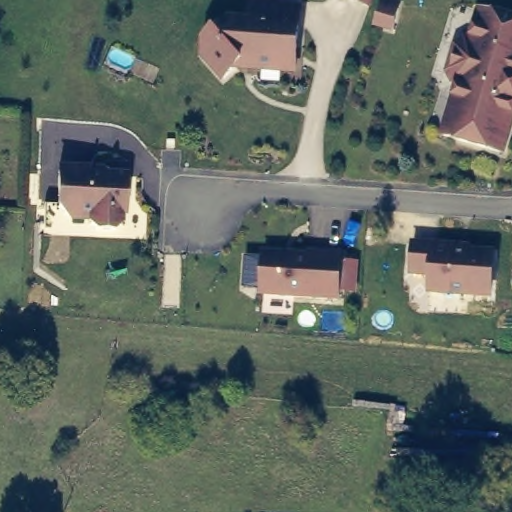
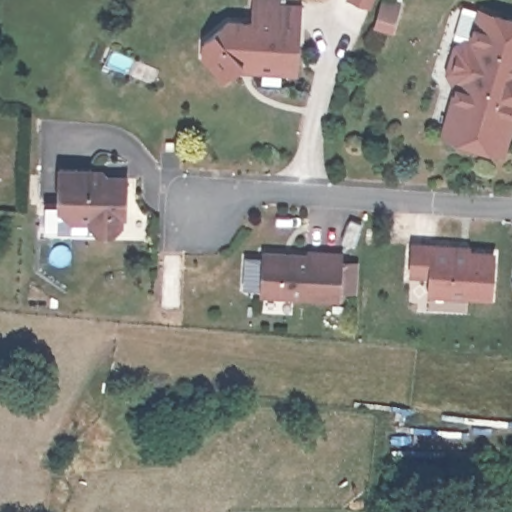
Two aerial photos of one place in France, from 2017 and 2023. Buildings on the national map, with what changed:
unchanged [(217,13),(271,17),(275,5),(300,6),(296,74),(227,70),(221,79),(197,57),(197,39),(217,13)]
unchanged [(512,15),(512,129),(505,151),(442,137),(455,75),(451,74),(451,58),(461,39),(468,41),(480,5),(512,15)]
unchanged [(125,170),(124,218),(113,230),(91,230),(85,224),(70,223),(61,211),(52,210),(55,167),(125,170)]
unchanged [(492,247),(490,297),(426,294),(425,276),(407,276),(408,241),(492,247)]
unchanged [(341,255),(340,299),(260,296),(260,251),(341,255)]

